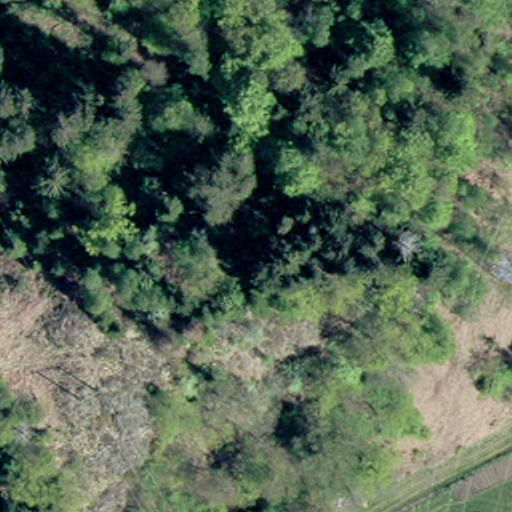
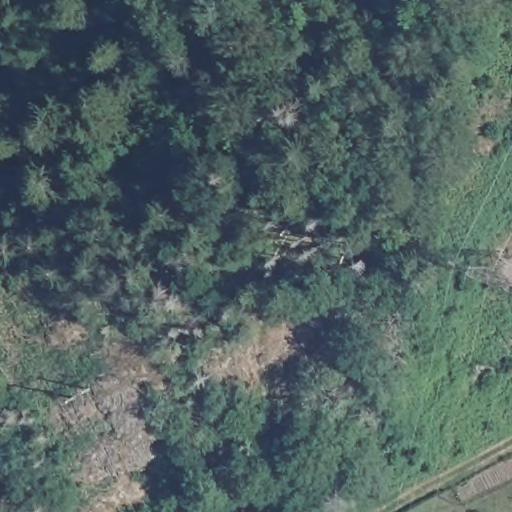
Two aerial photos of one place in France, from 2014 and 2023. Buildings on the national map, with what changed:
unchanged [(308,512),(294,512),(305,506),(308,512)]

